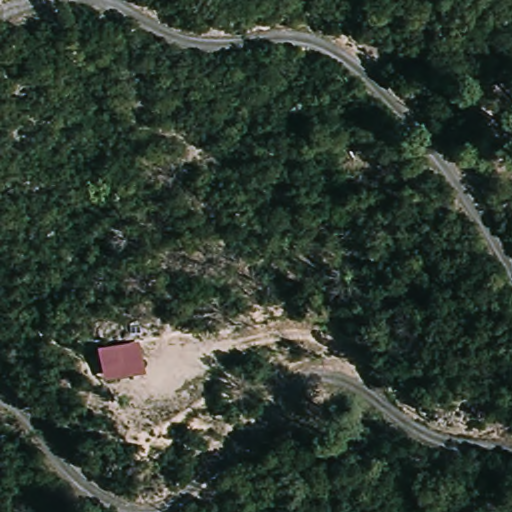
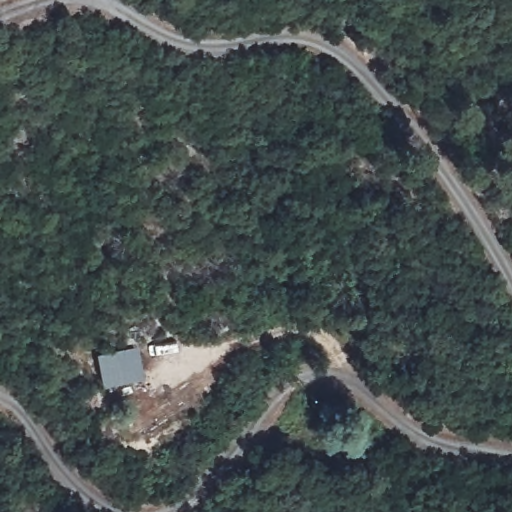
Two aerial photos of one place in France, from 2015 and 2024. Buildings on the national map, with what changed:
unchanged [(105,383),(97,354),(137,345),(143,376),(105,383)]

